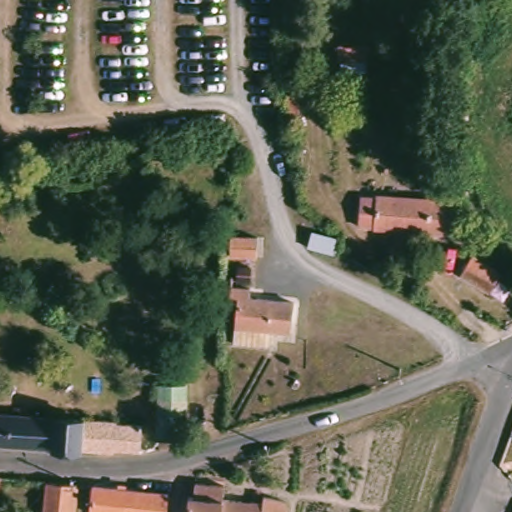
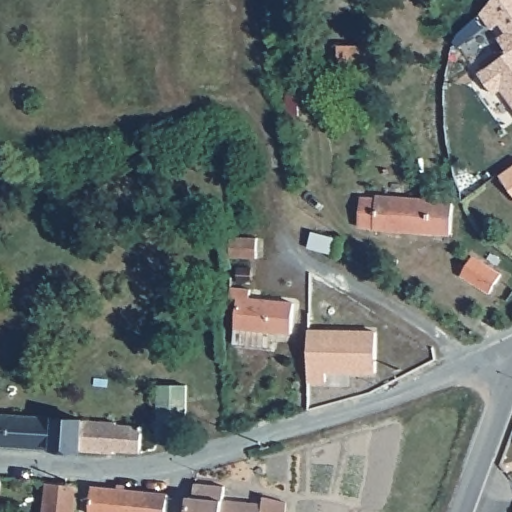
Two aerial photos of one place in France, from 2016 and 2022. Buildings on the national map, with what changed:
new [(493,93),(479,71),(508,52),(497,37),(512,26),(512,105),(500,89),(493,93)]
unchanged [(238,129),(246,130),(246,147),(237,146),(238,129)]
new [(512,190),(501,174),(512,165),(512,190)]
unchanged [(380,204),(381,201),(457,208),(455,238),(363,232),(365,202),(380,204)]
new [(228,238),(253,239),(252,258),(227,258),(228,238)]
unchanged [(499,273),(488,292),(460,276),(471,256),(499,273)]
unchanged [(242,303),(235,302),(236,293),(253,295),(253,304),(297,308),(295,338),(276,337),(274,352),(238,348),(242,303)]
new [(375,329),(375,374),(325,372),(324,383),(307,382),(309,328),(375,329)]
unchanged [(164,386),(191,385),(190,440),(163,441),(164,386)]
unchanged [(135,390),(155,390),(153,414),(133,413),(135,390)]
unchanged [(110,423),(110,426),(136,429),(134,452),(135,455),(0,446),(0,417),(110,423)]
unchanged [(197,498),(198,485),(225,486),(225,500),(262,503),(263,497),(285,503),(285,512),(191,512),(192,498),(197,498)]
unchanged [(78,495),(76,512),(43,512),(46,487),(72,490),(78,495)]
unchanged [(172,500),(171,512),(96,512),(99,491),(172,500)]

